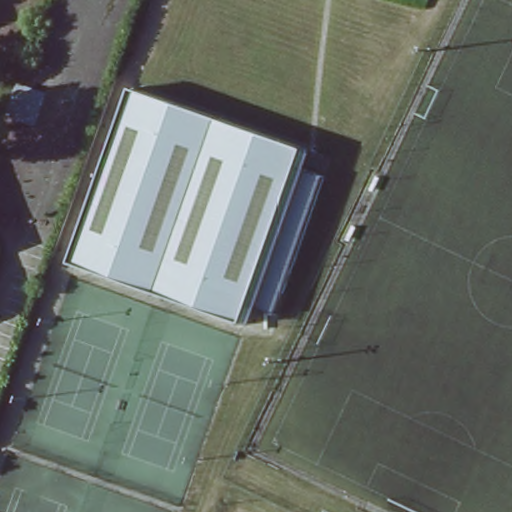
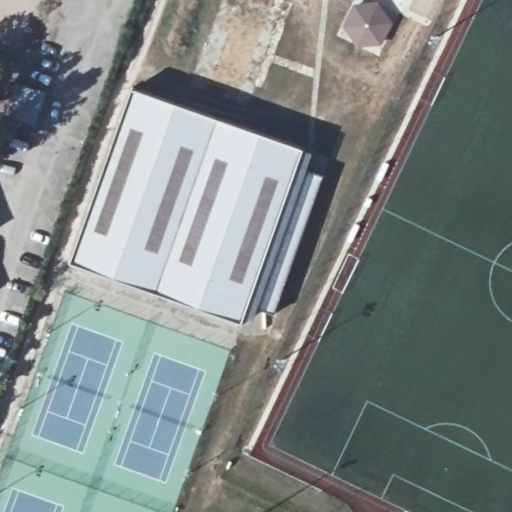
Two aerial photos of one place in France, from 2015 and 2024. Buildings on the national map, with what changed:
new [(352,0),(362,0),(365,0),(368,0),(380,0),(396,21),(382,47),(357,47),(344,32),(339,29),(352,0)]
unchanged [(17,80),(49,91),(38,124),(7,112),(17,80)]
unchanged [(244,324),(70,261),(135,84),(308,147),(302,166),(325,175),(283,293),(275,313),(250,306),(244,324)]

